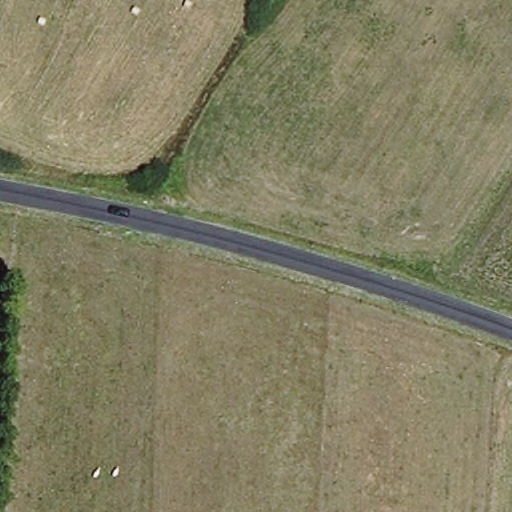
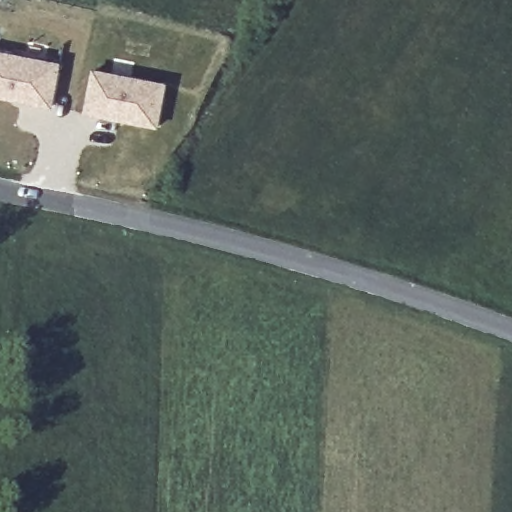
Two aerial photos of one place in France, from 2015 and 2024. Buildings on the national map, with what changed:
new [(53,104),(0,94),(0,51),(61,62),(53,104)]
new [(99,71),(169,86),(160,127),(90,113),(99,71)]

